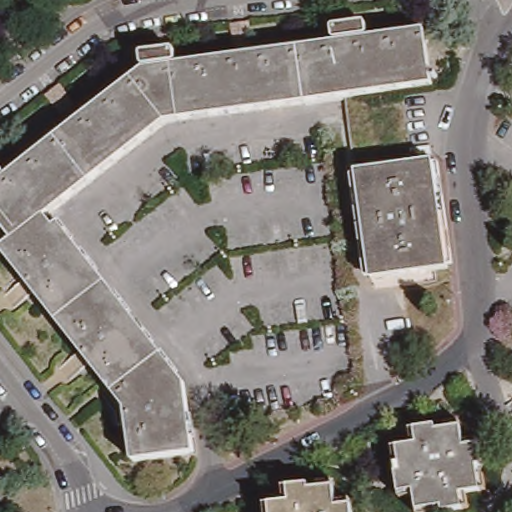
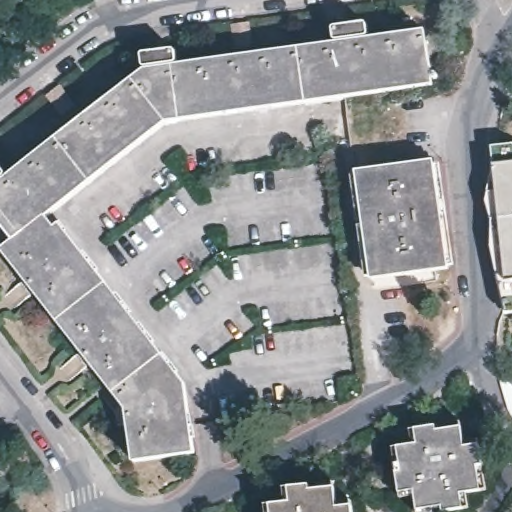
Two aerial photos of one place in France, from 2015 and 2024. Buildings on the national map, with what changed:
unchanged [(134,399),(6,246),(18,236),(0,212),(0,159),(3,156),(12,166),(11,171),(16,178),(150,72),(149,63),(146,63),(145,48),(179,44),(181,59),(179,60),(180,66),(341,44),(340,38),(338,38),(337,23),(369,19),(372,32),(368,34),(370,40),(428,32),(436,81),(171,119),(52,211),(185,377),(196,444),(142,452),(134,399)]
new [(508,313),(492,249),(493,224),(486,203),(495,179),(494,165),(492,147),(512,145),(512,313),(508,313)]
unchanged [(443,196),(440,196),(444,224),(447,224),(453,263),(375,274),(361,166),(438,156),(443,196)]
unchanged [(439,426),(440,430),(465,427),(467,446),(483,445),(485,465),(480,466),(481,490),(462,492),(463,507),(442,509),(441,505),(416,508),(414,489),(401,491),(398,463),(402,462),(402,446),(419,445),(417,428),(439,426)]
unchanged [(1,476),(0,476),(0,474),(1,476)]
unchanged [(311,487),(312,491),(338,489),(340,509),(356,508),(356,512),(275,512),(275,503),(293,502),(292,488),(311,487)]

